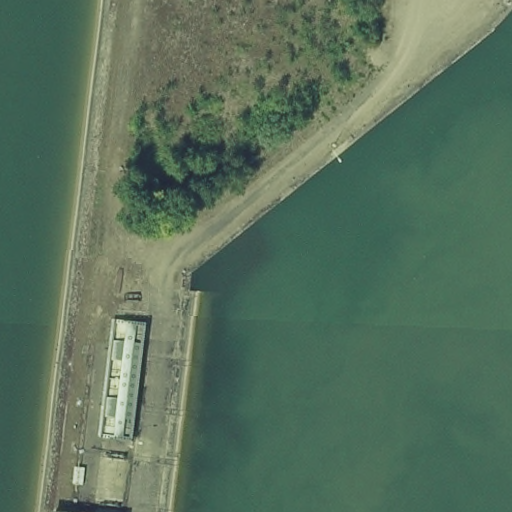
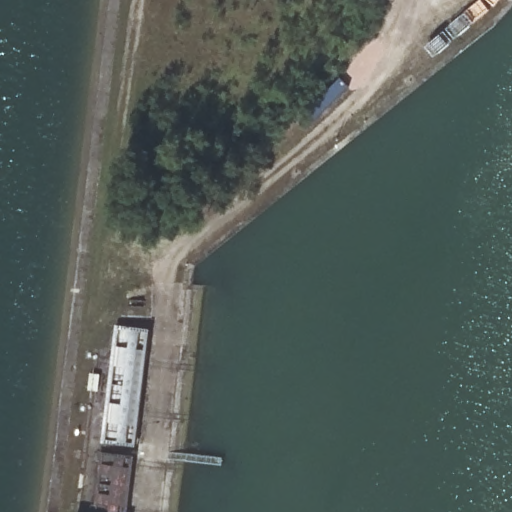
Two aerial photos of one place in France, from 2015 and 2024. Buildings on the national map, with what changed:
unchanged [(153,331),(131,512),(91,512),(114,327),(153,331)]

